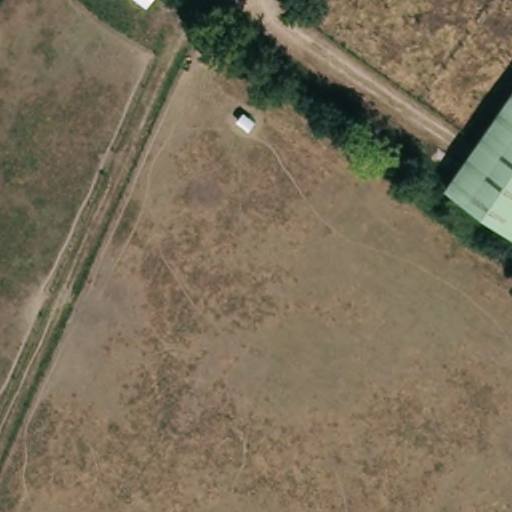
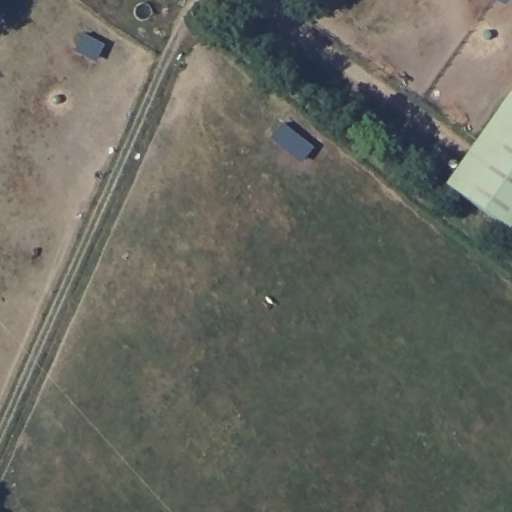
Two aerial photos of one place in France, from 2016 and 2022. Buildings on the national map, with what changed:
unchanged [(512,223),(450,181),(512,95),(512,223)]

